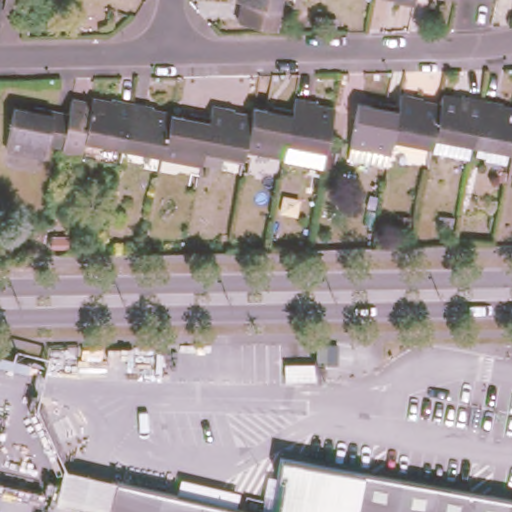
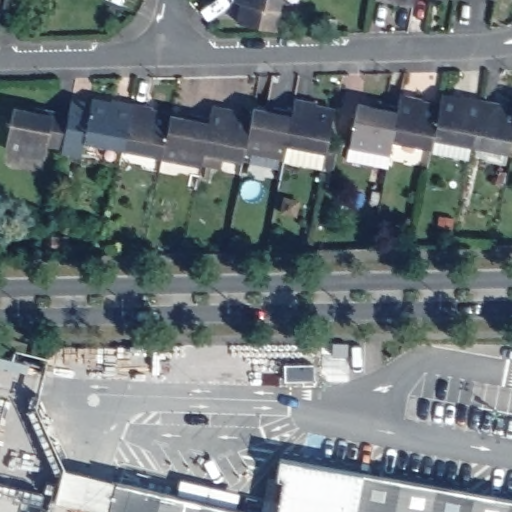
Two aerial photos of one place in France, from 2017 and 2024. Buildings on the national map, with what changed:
unchanged [(7,7),(8,0),(25,0),(23,11),(7,7)]
unchanged [(235,16),(238,0),(277,0),(273,22),(235,16)]
unchanged [(394,0),(413,0),(412,7),(394,2),(394,0)]
unchanged [(430,0),(434,0),(434,1),(430,0)]
unchanged [(454,0),(454,1),(451,0),(454,0)]
unchanged [(494,0),(494,2),(484,0),(494,0)]
unchanged [(78,135),(85,97),(103,100),(105,95),(125,98),(116,142),(78,135)]
unchanged [(282,139),(289,105),(291,95),(310,98),(310,103),(329,107),(322,146),(282,139)]
unchanged [(392,141),(398,107),(401,95),(421,99),(420,105),(440,109),(434,139),(432,149),(392,141)]
unchanged [(470,162),(431,154),(432,149),(434,139),(440,109),(442,97),(460,101),(462,96),(482,100),(473,147),(470,162)]
unchanged [(116,142),(125,98),(146,102),(144,107),(163,111),(156,149),(116,142)]
unchanged [(482,100),(500,103),(499,109),(512,111),(512,155),(473,147),(482,100)]
unchanged [(198,145),(204,112),(206,101),(227,105),(226,108),(245,112),(239,142),(237,152),(198,145)]
unchanged [(239,142),(245,112),(247,102),(267,105),(268,101),(289,105),(282,139),(280,150),(239,142)]
unchanged [(40,140),(38,152),(0,143),(0,133),(6,105),(26,109),(27,103),(62,110),(55,144),(40,140)]
unchanged [(347,160),(358,104),(379,108),(380,104),(398,107),(392,141),(387,168),(347,160)]
unchanged [(181,115),(183,109),(204,112),(198,145),(195,157),(156,149),(163,111),(181,115)]
unchanged [(308,357),(308,373),(280,373),(280,357),(308,357)]
unchanged [(283,476),(274,474),(277,455),(284,456),(310,461),(300,512),(277,512),(283,476)]
unchanged [(359,470),(351,512),(300,512),(310,461),(359,470)]
unchanged [(359,470),(443,486),(485,492),(480,512),(351,512),(359,470)]
unchanged [(254,512),(113,512),(114,512),(72,504),(77,479),(254,512)]
unchanged [(485,492),(498,495),(512,498),(512,512),(480,512),(485,492)]

